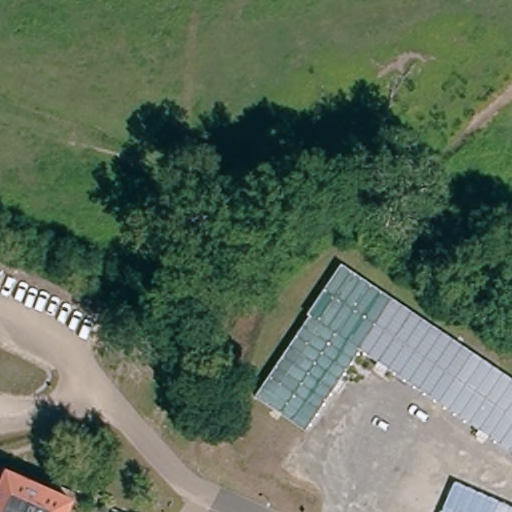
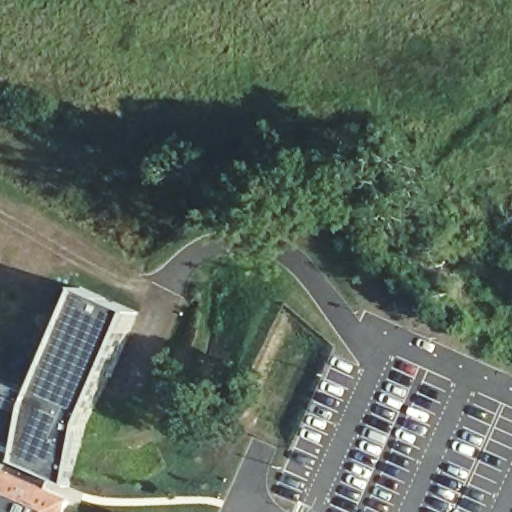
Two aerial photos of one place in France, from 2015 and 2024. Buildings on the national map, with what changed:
demolished [(470,349),(437,400),(357,349),(318,410),(267,378),(306,316),(304,315),(336,264),(470,349)]
new [(0,495),(0,440),(20,448),(26,411),(30,403),(0,390),(0,378),(34,393),(81,288),(135,312),(83,426),(70,485),(58,480),(51,493),(9,475),(0,495)]
unchanged [(9,475),(73,503),(69,512),(0,512),(0,494),(2,489),(9,475)]

